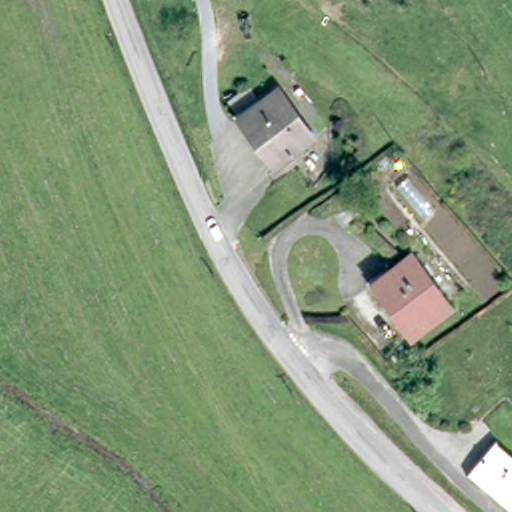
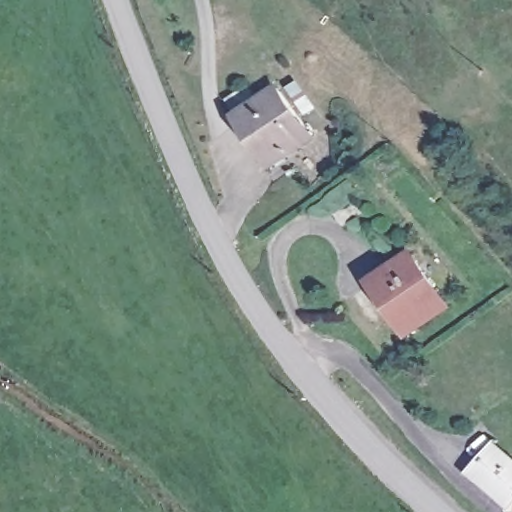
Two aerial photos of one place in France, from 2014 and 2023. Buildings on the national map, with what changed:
unchanged [(316,133),(279,159),(265,139),(261,142),(239,113),(280,84),(316,133)]
unchanged [(366,216),(344,232),(333,216),(355,200),(366,216)]
unchanged [(451,305),(415,332),(378,278),(414,253),(451,305)]
unchanged [(468,465),(493,438),(512,454),(512,500),(511,502),(468,465)]

